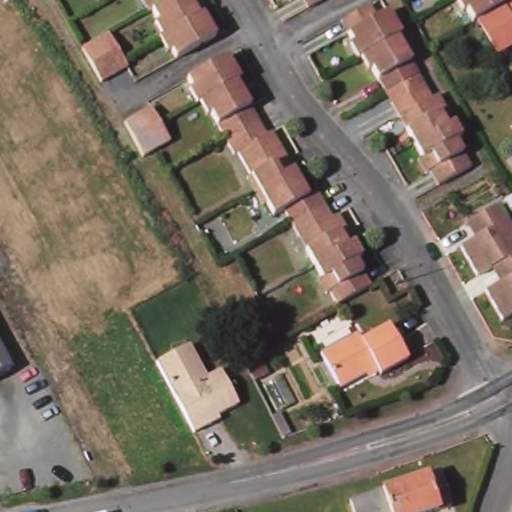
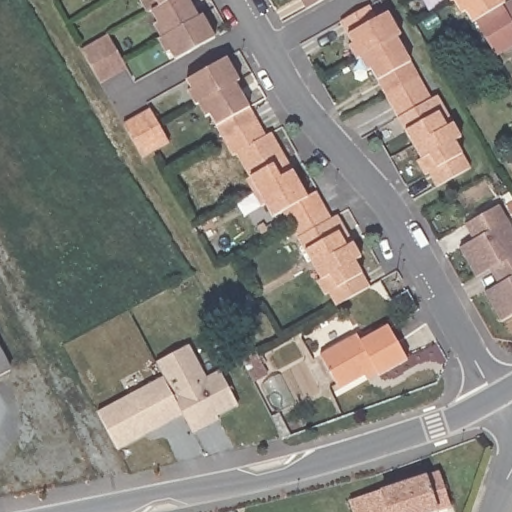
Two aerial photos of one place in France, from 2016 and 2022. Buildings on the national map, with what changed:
unchanged [(167,53),(163,55),(163,54),(160,49),(159,46),(157,43),(161,41),(154,29),(155,29),(156,28),(157,28),(151,13),(146,15),(143,9),(142,7),(141,6),(139,2),(138,0),(189,0),(191,3),(193,6),(196,11),(200,10),(201,12),(204,18),(205,20),(214,37),(216,41),(212,43),(210,44),(176,62),(174,63),(167,53)]
unchanged [(306,1),(302,4),(301,0),(331,0),(312,11),(306,1)]
unchanged [(501,9),(473,24),(462,3),(457,5),(455,0),(505,0),(507,5),(512,2),(512,29),(501,9)]
unchanged [(370,62),(362,66),(345,34),(382,13),(389,26),(396,23),(406,44),(401,46),(421,84),(391,99),(370,62)]
unchanged [(106,36),(113,49),(125,69),(119,73),(101,82),(100,82),(97,83),(97,84),(92,75),(89,69),(79,51),(106,36)]
unchanged [(365,296),(343,308),(342,309),(336,312),(332,314),(327,305),(312,276),(310,271),(292,238),(290,235),(281,219),(272,224),(267,214),(256,194),(227,141),(226,138),(226,137),(206,100),(205,99),(196,104),(190,95),(183,83),(182,81),(185,80),(189,78),(191,77),(197,73),(198,73),(200,72),(202,71),(214,64),(226,58),(228,57),(241,80),(237,83),(240,89),(240,90),(252,113),(259,125),(260,127),(287,178),(300,203),(302,208),(313,202),(318,200),(327,215),(327,216),(328,217),(328,218),(335,230),(346,251),(348,255),(360,277),(368,293),(370,294),(365,296)]
unchanged [(437,115),(448,136),(459,156),(468,175),(437,193),(428,176),(416,154),(405,134),(395,117),(429,100),(437,115)]
unchanged [(158,153),(155,154),(146,159),(142,151),(140,147),(139,146),(137,143),(135,138),(128,126),(127,124),(127,123),(126,122),(132,119),(149,110),(152,109),(153,111),(160,124),(161,126),(169,140),(170,141),(172,145),(162,151),(161,151),(158,153)]
unchanged [(503,320),(487,294),(497,285),(490,271),(478,276),(462,241),(469,236),(464,224),(502,202),(512,219),(512,315),(503,320)]
unchanged [(362,343),(388,329),(407,363),(379,378),(376,372),(336,392),(317,357),(358,336),(362,343)]
unchanged [(157,363),(192,345),(209,377),(220,372),(237,407),(219,416),(222,420),(195,434),(157,363)]
unchanged [(0,371),(0,348),(9,365),(0,371)]
new [(185,415),(119,450),(97,413),(165,377),(185,415)]
unchanged [(430,478),(446,477),(451,512),(449,512),(352,512),(351,504),(382,493),(430,478)]

